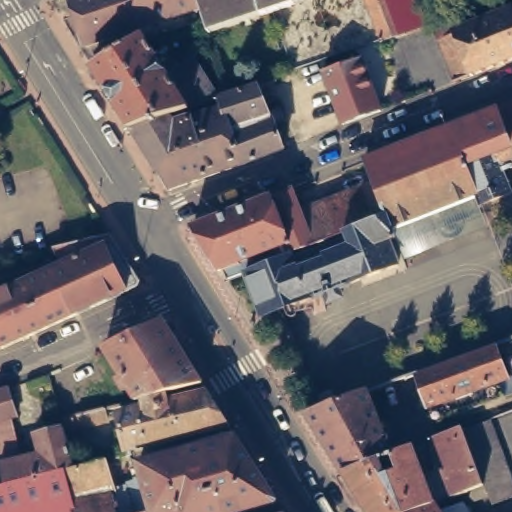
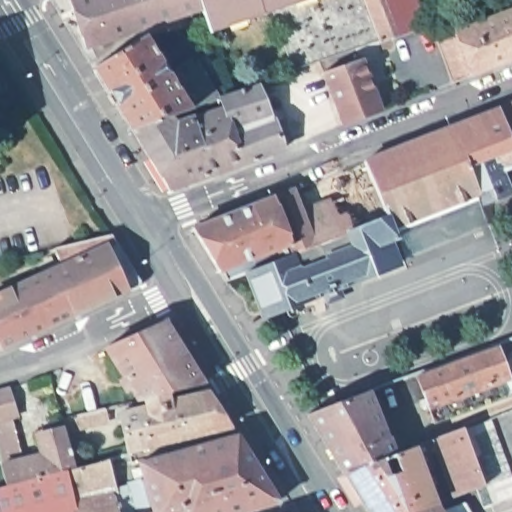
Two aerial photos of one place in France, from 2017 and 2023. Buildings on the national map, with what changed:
unchanged [(85,44),(71,0),(201,0),(202,4),(85,44)]
unchanged [(205,16),(202,4),(201,0),(298,0),(210,29),(205,16)]
unchanged [(379,36),(366,0),(394,0),(405,28),(406,29),(380,38),(379,36)]
unchanged [(418,0),(425,20),(405,28),(394,0),(418,0)]
unchanged [(442,41),(460,34),(486,24),(483,15),(492,12),(495,20),(512,14),(512,62),(475,76),(457,83),(442,41)]
unchanged [(175,112),(131,125),(93,64),(142,33),(145,34),(168,70),(193,53),(219,93),(175,112)]
unchanged [(342,119),(323,67),(362,54),(381,106),(342,119)]
unchanged [(268,105),(275,116),(284,145),(170,186),(131,125),(175,112),(177,119),(223,105),(220,96),(219,93),(230,90),(258,80),(268,105)]
unchanged [(386,224),(375,185),(365,161),(512,107),(512,168),(503,172),(512,194),(479,206),(475,197),(462,201),(440,210),(387,229),(386,224)]
unchanged [(375,185),(386,224),(347,235),(330,243),(315,247),(304,213),(375,185)]
unchanged [(192,229),(295,189),(304,213),(315,247),(310,249),(295,256),(248,274),(225,282),(192,229)]
unchanged [(295,256),(302,272),(315,267),(310,249),(315,247),(330,243),(334,255),(352,247),(347,235),(386,224),(387,229),(391,240),(405,236),(413,258),(398,263),(398,266),(339,289),(342,298),(327,303),(325,295),(264,317),(248,274),(295,256)]
unchanged [(67,266),(60,249),(116,235),(145,282),(145,287),(7,348),(0,334),(0,296),(56,271),(67,266)]
unchanged [(240,512),(0,512),(0,478),(3,477),(0,462),(0,384),(12,382),(23,413),(11,418),(23,449),(38,446),(32,427),(76,415),(72,398),(130,386),(100,343),(170,317),(282,501),(240,512)]
unchanged [(0,350),(0,334),(7,348),(0,350)]
unchanged [(372,385),(389,379),(412,371),(492,342),(504,374),(495,377),(500,392),(429,418),(417,387),(395,395),(377,401),(372,385)]
unchanged [(302,410),(364,388),(373,411),(381,429),(389,448),(339,470),(302,410)]
unchanged [(485,415),(512,490),(512,491),(487,501),(480,481),(459,425),(485,415)]
unchanged [(389,448),(407,443),(412,441),(427,436),(458,423),(459,425),(480,481),(448,493),(448,491),(431,446),(419,450),(418,447),(410,450),(429,499),(394,512),(366,512),(339,470),(389,448)]
unchanged [(429,499),(434,508),(457,499),(466,512),(394,512),(429,499)]

